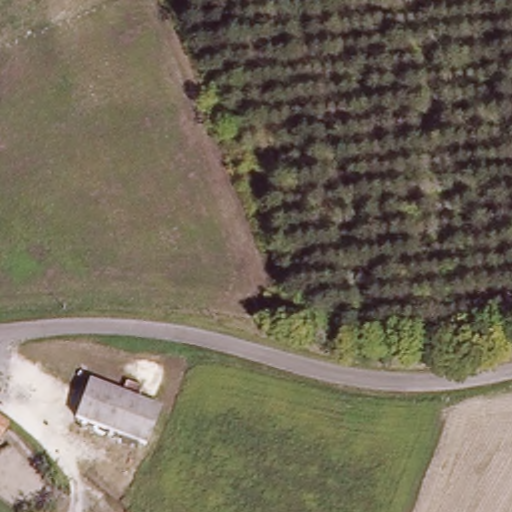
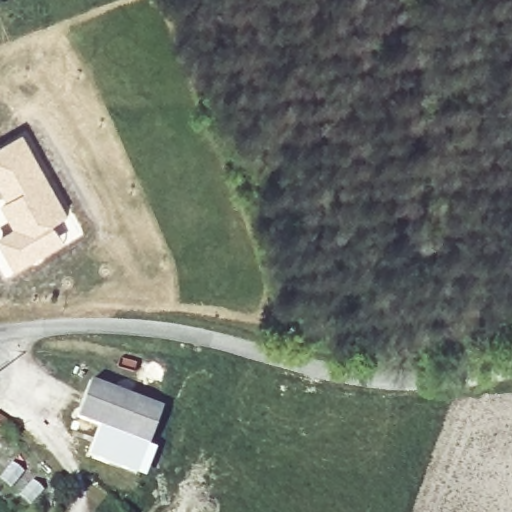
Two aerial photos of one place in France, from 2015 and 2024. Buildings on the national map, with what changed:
new [(69,209),(60,221),(67,236),(17,268),(0,239),(0,234),(16,225),(5,202),(9,199),(0,184),(0,146),(25,132),(69,209)]
unchanged [(78,427),(92,386),(167,413),(150,455),(78,427)]
unchanged [(7,430),(5,435),(0,437),(0,421),(3,422),(7,430)]

